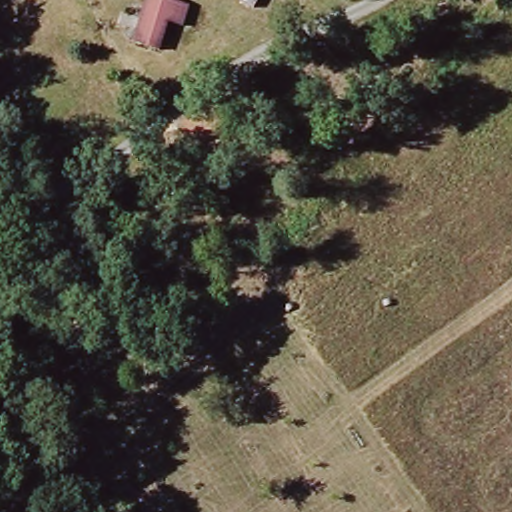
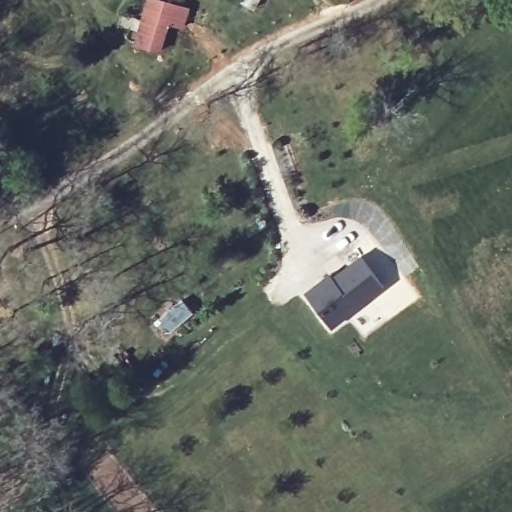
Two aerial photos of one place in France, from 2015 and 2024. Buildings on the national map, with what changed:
unchanged [(165,18),(157,45),(138,40),(131,39),(144,0),(180,0),(186,2),(180,21),(165,18)]
unchanged [(249,0),(254,0),(252,2),(249,0)]
new [(304,292),(329,273),(332,277),(358,256),(383,287),(333,327),(304,292)]

